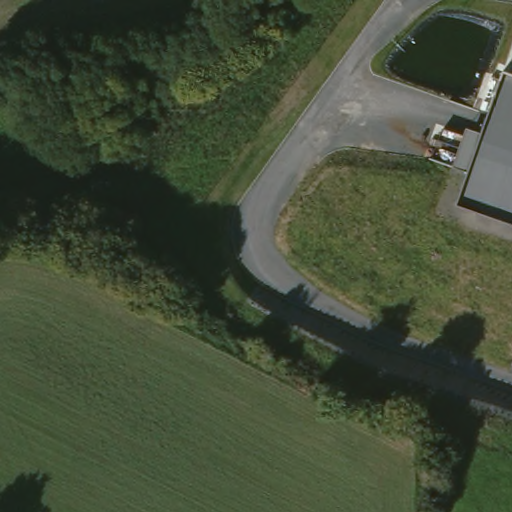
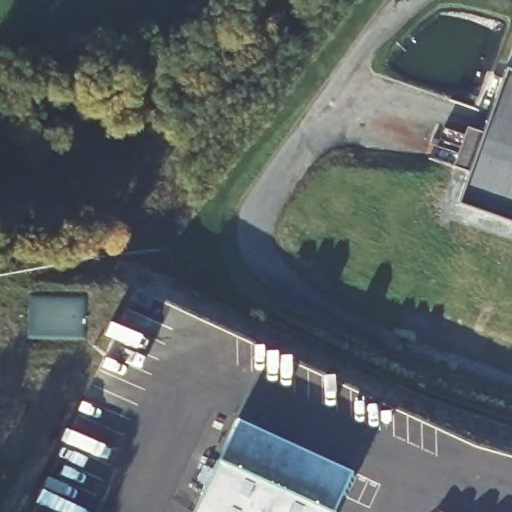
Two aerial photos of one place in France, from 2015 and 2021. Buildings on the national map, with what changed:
unchanged [(456,206),(468,172),(453,166),(466,130),(481,135),(503,72),(512,75),(512,227),(456,206)]
new [(216,463),(217,463),(235,422),(353,471),(336,512),(196,512),(216,463)]

